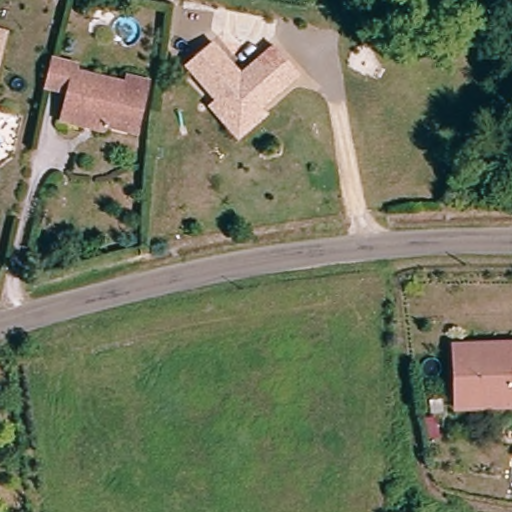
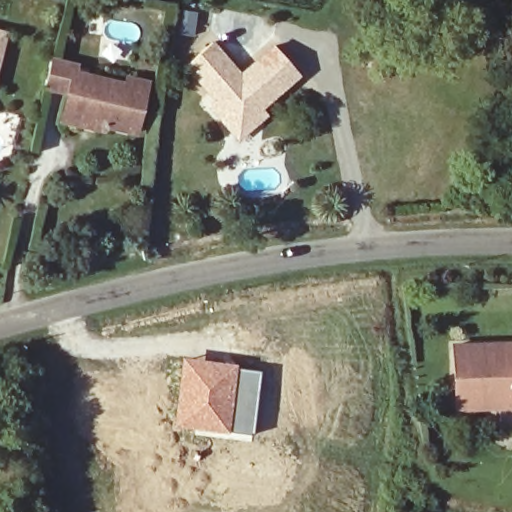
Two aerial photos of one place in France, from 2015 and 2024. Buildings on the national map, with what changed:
unchanged [(1,49),(0,49),(0,27),(6,29),(1,49)]
unchanged [(214,104),(219,99),(187,64),(213,40),(228,56),(243,72),(276,42),(302,71),(264,105),(269,111),(243,135),(214,104)]
unchanged [(75,94),(41,86),(49,56),(83,65),(81,70),(75,94)]
unchanged [(146,117),(142,131),(114,124),(110,128),(69,118),(75,94),(81,70),(133,83),(135,76),(155,81),(146,117)]
unchanged [(457,385),(456,345),(512,343),(512,406),(500,406),(458,407),(457,385)]
new [(182,356),(223,361),(260,370),(250,438),(244,437),(201,433),(171,427),(182,356)]

